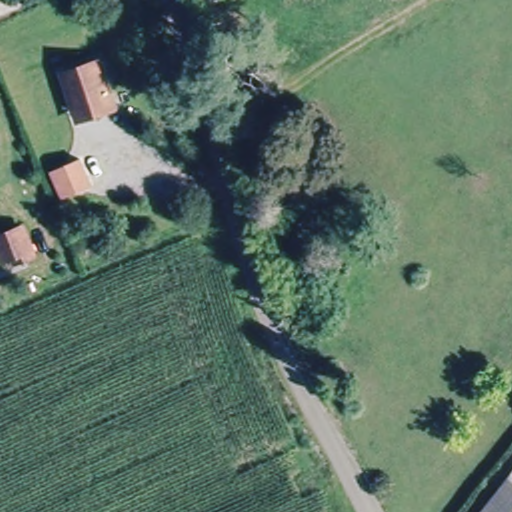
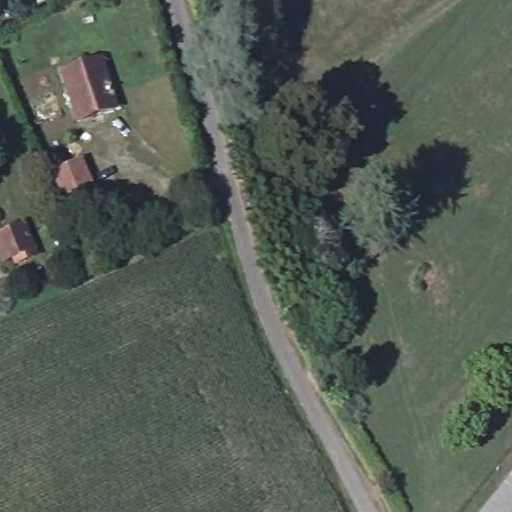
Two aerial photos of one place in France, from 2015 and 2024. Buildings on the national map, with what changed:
unchanged [(78,122),(77,114),(62,75),(98,62),(112,101),(116,110),(78,122)]
unchanged [(80,166),(86,180),(62,189),(56,175),(80,166)]
unchanged [(14,258),(3,262),(0,254),(0,236),(24,227),(30,245),(35,257),(17,263),(14,258)]
unchanged [(512,470),(512,512),(479,512),(512,470)]

